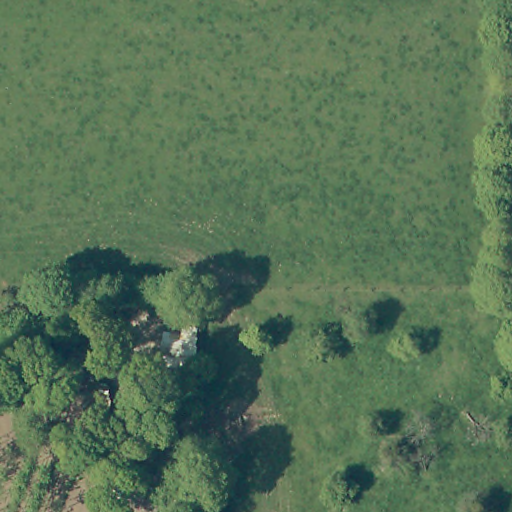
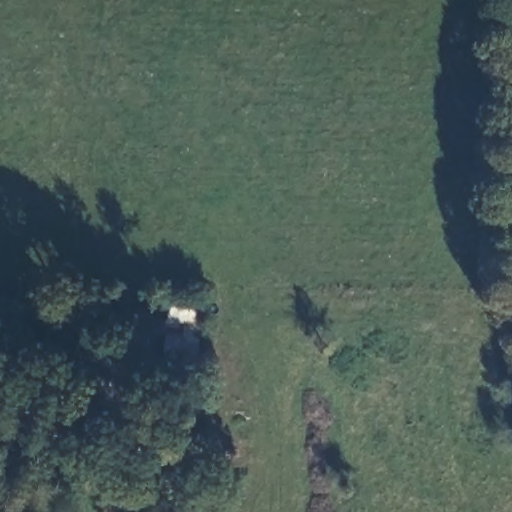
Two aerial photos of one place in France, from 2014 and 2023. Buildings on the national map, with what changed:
unchanged [(171,304),(201,307),(199,328),(169,325),(171,304)]

